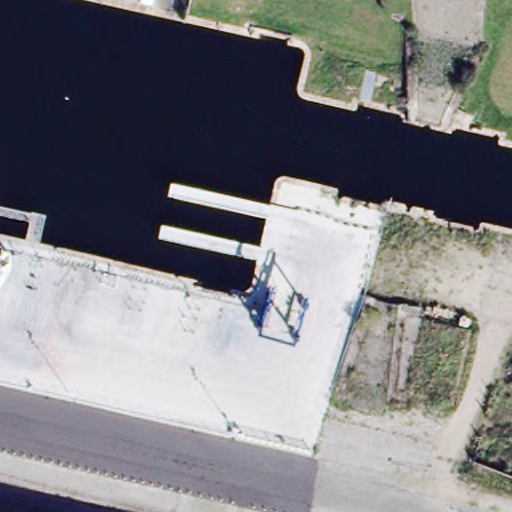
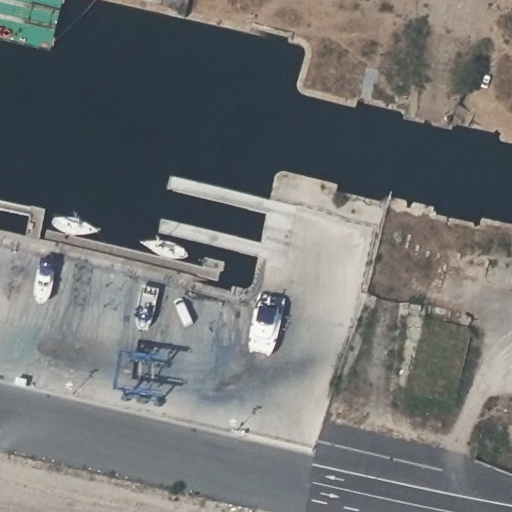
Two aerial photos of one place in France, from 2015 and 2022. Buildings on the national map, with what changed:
[]

